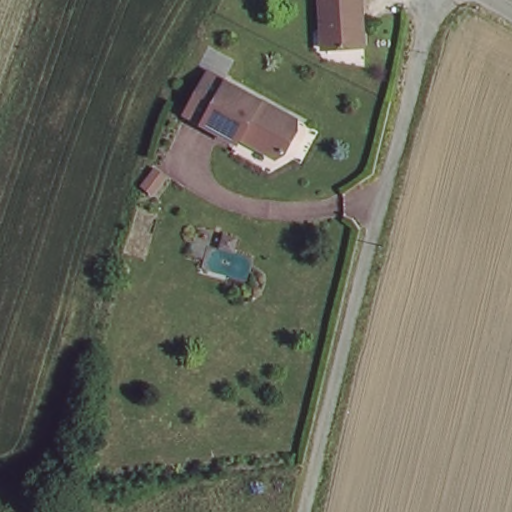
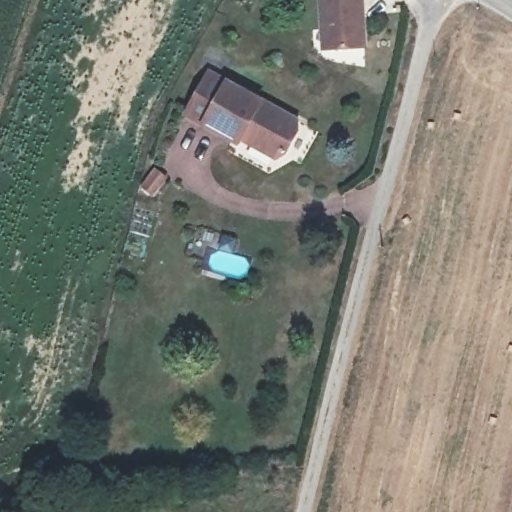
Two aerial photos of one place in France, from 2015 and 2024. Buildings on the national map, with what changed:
unchanged [(368,49),(330,49),(330,31),(323,31),(322,0),(367,0),(368,49)]
unchanged [(300,117),(300,133),(293,147),(281,155),(257,144),(257,136),(248,134),(242,143),(188,113),(211,71),(300,117)]

